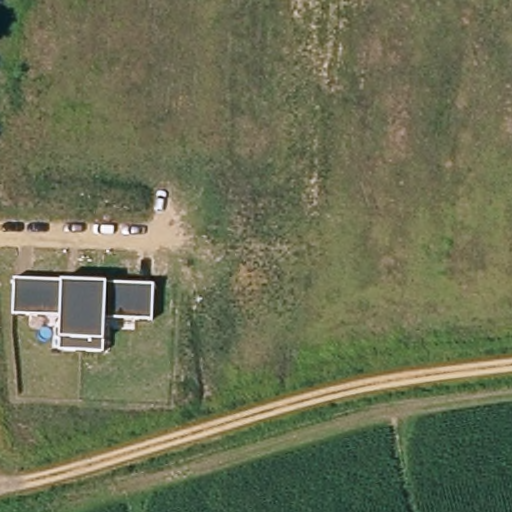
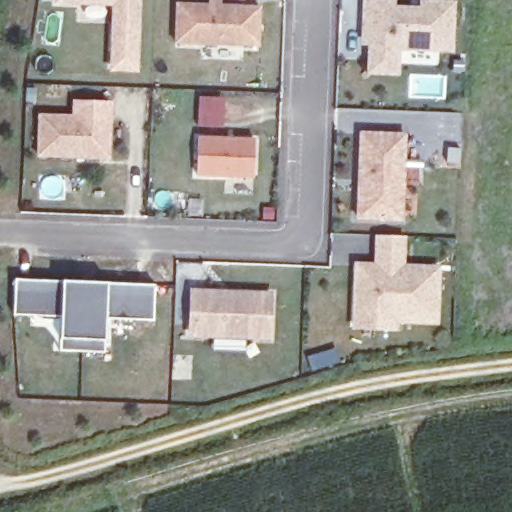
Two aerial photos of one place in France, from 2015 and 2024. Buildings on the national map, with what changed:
new [(138,73),(110,72),(112,6),(56,4),(56,0),(140,0),(138,73)]
new [(400,50),(400,75),(367,73),(367,45),(360,44),(361,0),(395,0),(395,5),(419,5),(419,0),(437,0),(455,0),(454,52),(400,50)]
new [(174,43),(175,3),(260,5),(259,47),(174,43)]
new [(36,155),(37,114),(71,115),(72,100),(112,101),(110,158),(36,155)]
new [(356,219),(357,131),(406,131),(403,220),(356,219)]
new [(254,178),(196,175),(197,135),(255,138),(254,178)]
new [(397,322),(397,330),(352,329),(354,261),(373,262),(375,235),(406,236),(405,263),(440,265),(437,323),(397,322)]
new [(61,338),(61,315),(14,313),(15,281),(62,283),(108,283),(154,286),(152,319),(105,316),(105,341),(104,350),(59,349),(61,338)]
new [(273,291),(270,340),(187,336),(189,287),(273,291)]

